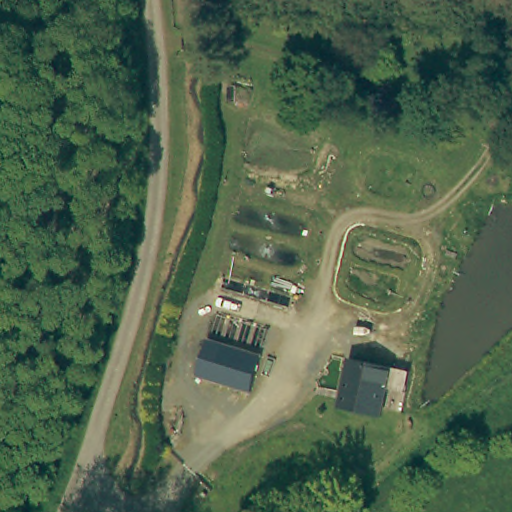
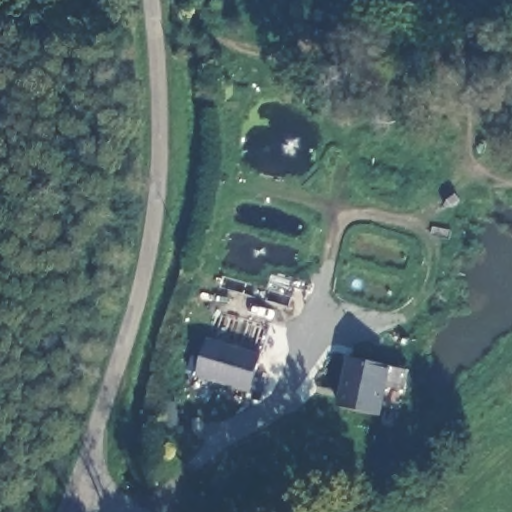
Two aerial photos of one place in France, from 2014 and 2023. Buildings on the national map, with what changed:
unchanged [(194,374),(199,340),(256,349),(250,383),(194,374)]
unchanged [(392,367),(409,371),(406,393),(388,391),(382,417),(339,408),(349,360),(392,367)]

